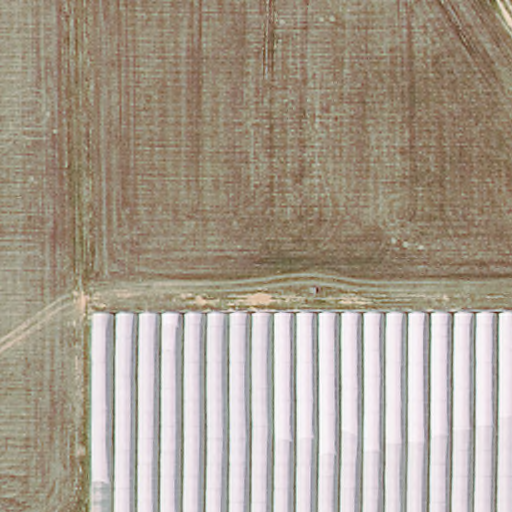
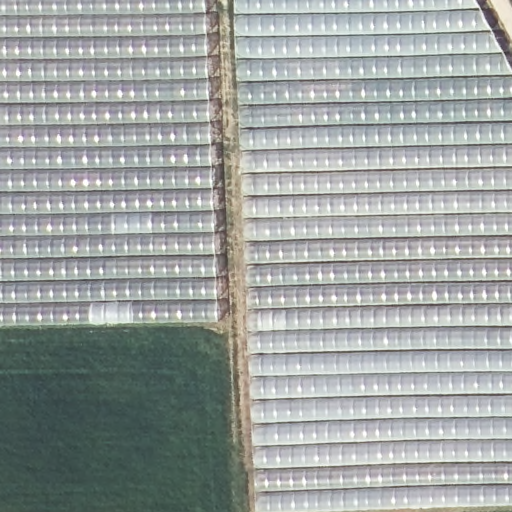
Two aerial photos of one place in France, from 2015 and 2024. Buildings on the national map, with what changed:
new [(207,31),(215,221),(217,321),(43,326),(0,326),(0,0),(205,0),(207,31)]
new [(512,70),(512,504),(460,504),(280,512),(255,512),(253,468),(240,204),(234,37),(233,0),(476,0),(512,70)]

